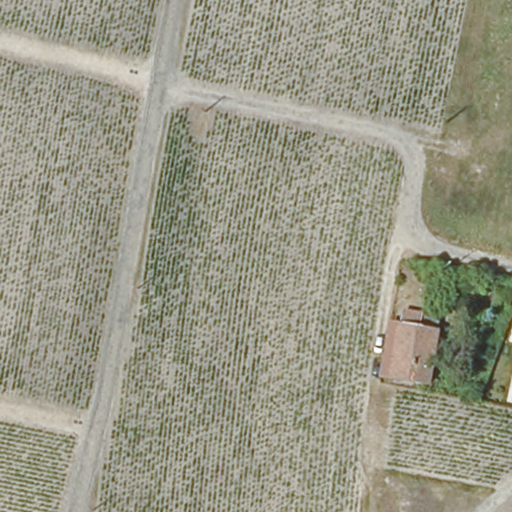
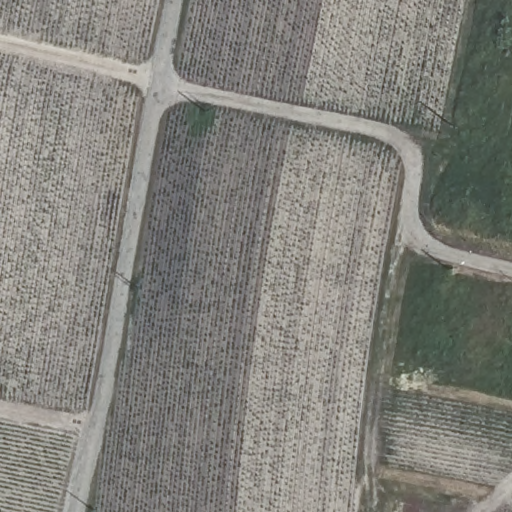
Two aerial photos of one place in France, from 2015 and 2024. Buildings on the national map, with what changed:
demolished [(438,335),(428,387),(392,382),(402,329),(405,312),(423,316),(423,318),(420,331),(433,333),(438,335)]
demolished [(466,329),(465,336),(458,335),(461,327),(466,329)]

